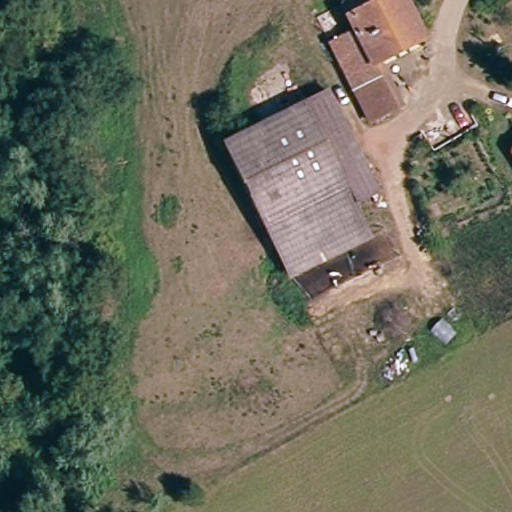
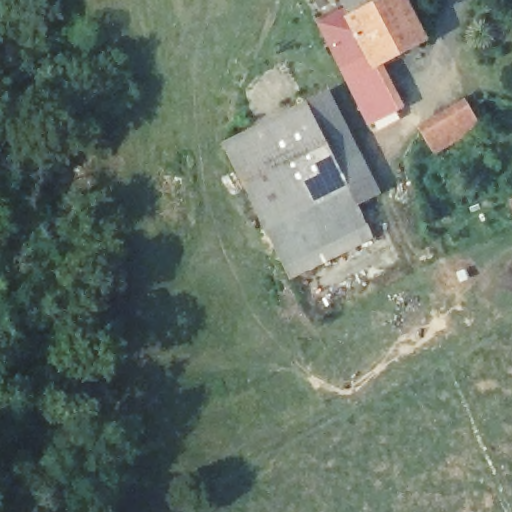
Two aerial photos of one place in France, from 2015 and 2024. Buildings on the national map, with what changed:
unchanged [(402,5),(421,41),(381,61),(396,90),(389,94),(397,110),(372,125),(332,47),(357,32),(349,15),(381,0),(411,0),(402,5)]
unchanged [(349,15),(342,0),(381,0),(349,15)]
unchanged [(362,208),(325,138),(308,106),(331,95),(384,196),(362,208)]
new [(417,127),(468,96),(486,125),(433,156),(421,134),(417,127)]
unchanged [(245,180),(229,149),(308,106),(325,138),(245,180)]
unchanged [(373,230),(294,272),(245,180),(325,138),(362,208),(373,230)]

